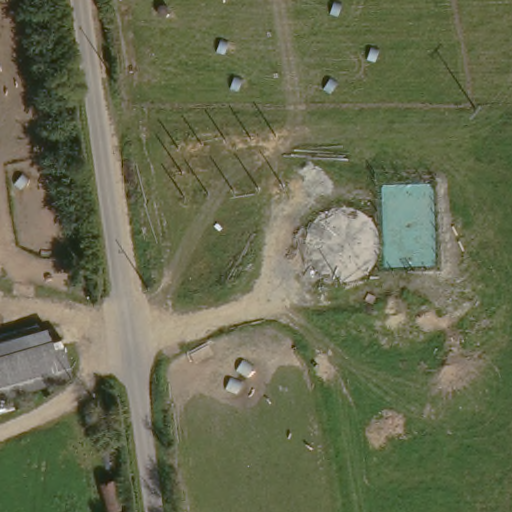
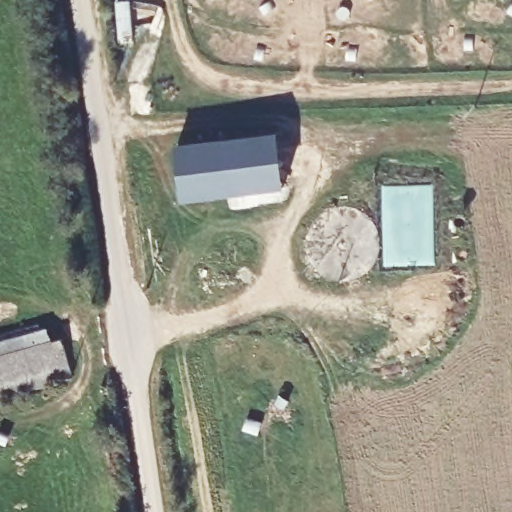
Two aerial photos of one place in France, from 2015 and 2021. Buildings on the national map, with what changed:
new [(287,188),(184,202),(178,144),(279,130),(287,188)]
unchanged [(59,338),(69,335),(78,374),(0,396),(0,345),(57,329),(59,338)]

